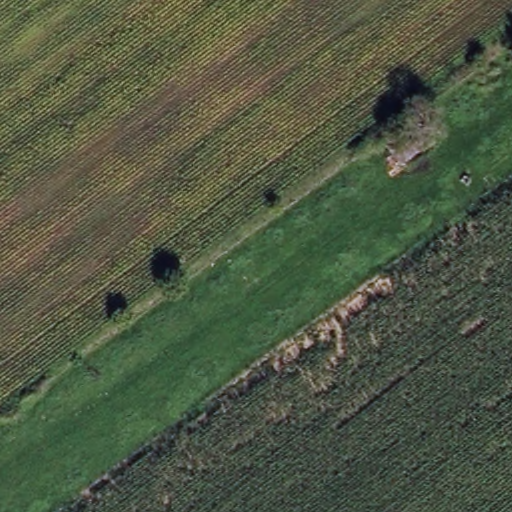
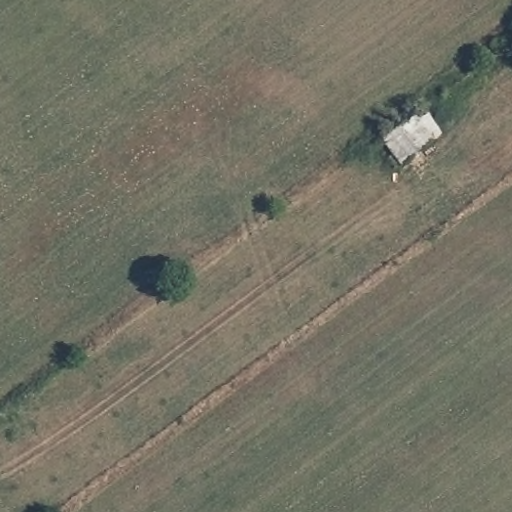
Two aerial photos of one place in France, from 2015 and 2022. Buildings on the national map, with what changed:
unchanged [(416,117),(433,141),(404,162),(387,138),(416,117)]

